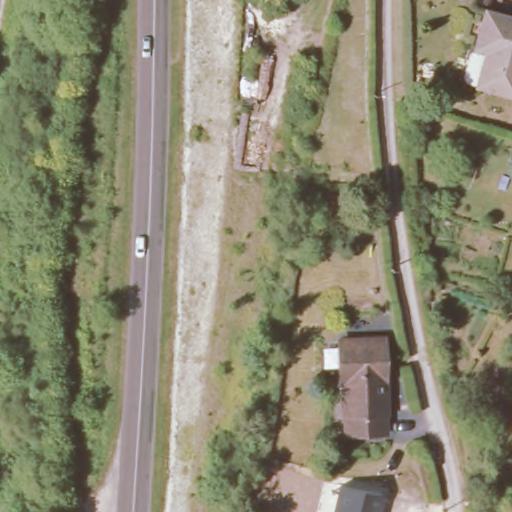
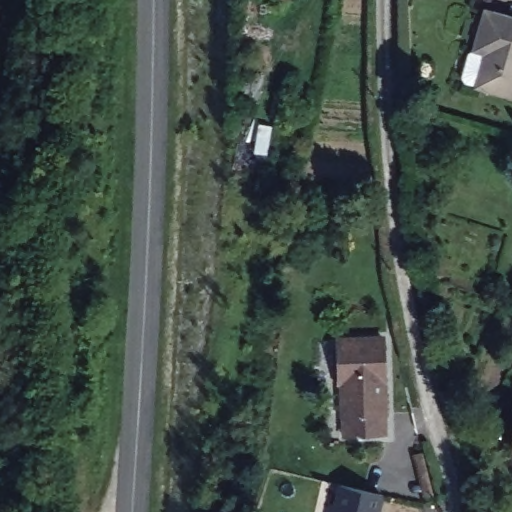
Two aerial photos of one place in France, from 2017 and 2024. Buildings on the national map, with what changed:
unchanged [(482,52),(470,49),(482,9),(512,17),(512,95),(472,84),(482,52)]
unchanged [(377,434),(336,431),(340,379),(334,379),(335,335),(382,338),(377,434)]
unchanged [(510,399),(512,398),(512,448),(510,448),(510,399)]
unchanged [(338,483),(384,494),(380,512),(331,512),(338,483)]

